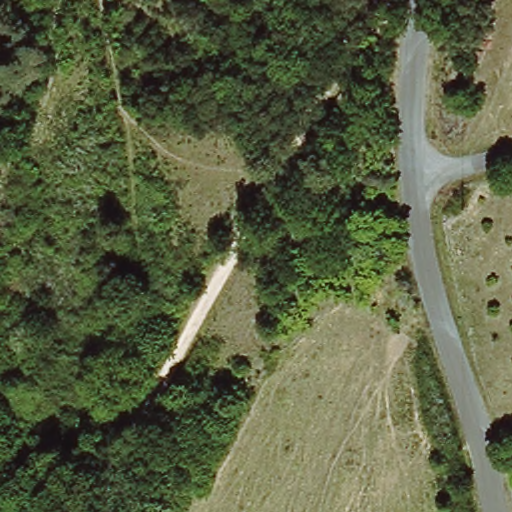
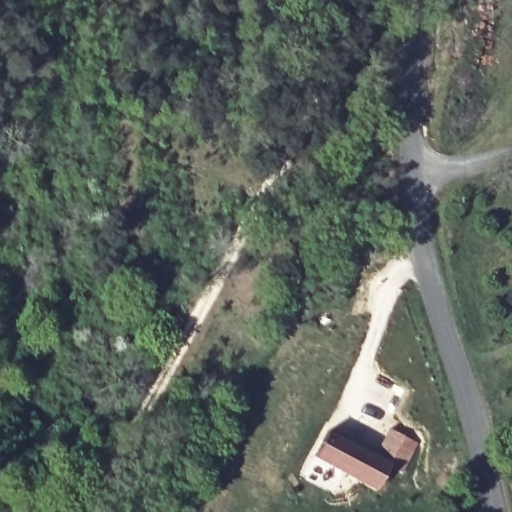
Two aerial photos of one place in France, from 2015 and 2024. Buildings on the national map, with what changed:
new [(403,472),(392,466),(378,489),(315,456),(330,431),(375,455),(391,429),(418,444),(403,472)]

